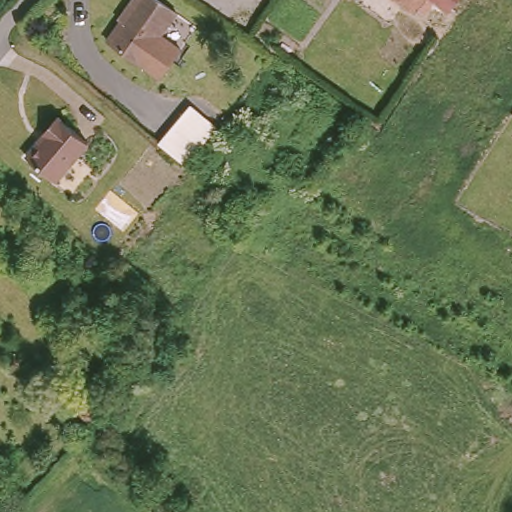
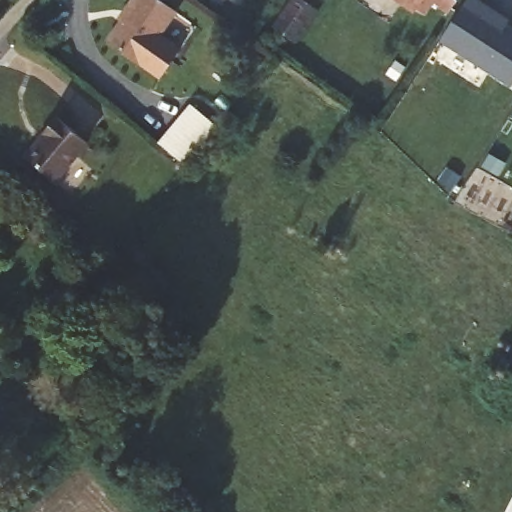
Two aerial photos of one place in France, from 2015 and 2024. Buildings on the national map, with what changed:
unchanged [(125,19),(122,17),(135,0),(153,0),(176,17),(160,38),(180,53),(160,83),(106,45),(125,19)]
unchanged [(402,2),(400,0),(404,0),(402,2)]
unchanged [(450,11),(438,2),(436,1),(435,0),(456,0),(450,11)]
new [(440,40),(466,0),(478,0),(510,20),(507,24),(512,27),(512,86),(440,40)]
unchanged [(160,142),(191,105),(216,126),(185,163),(160,142)]
unchanged [(43,132),(56,116),(87,142),(55,180),(25,156),(45,133),(43,132)]

